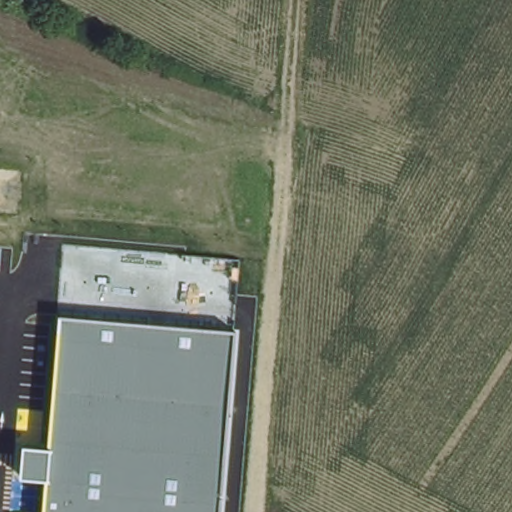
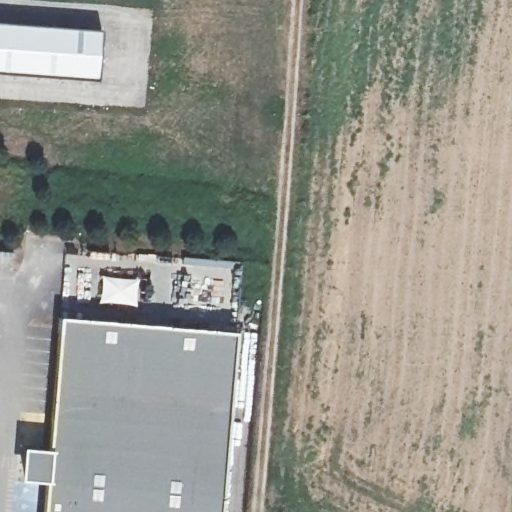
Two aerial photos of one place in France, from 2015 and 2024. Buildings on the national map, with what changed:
new [(102,30),(98,80),(0,73),(0,24),(102,30)]
unchanged [(219,512),(42,512),(45,481),(19,479),(22,447),(46,450),(58,317),(235,331),(219,512)]

